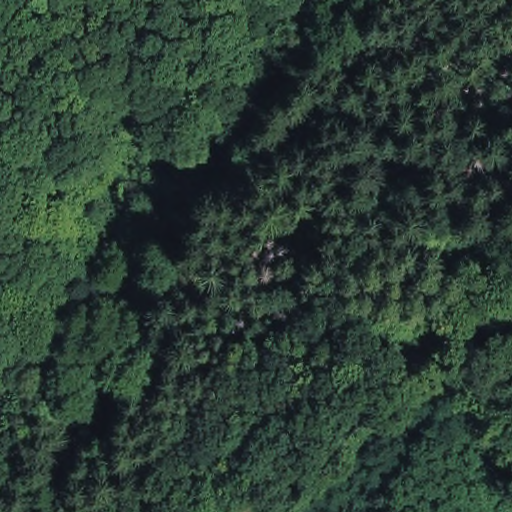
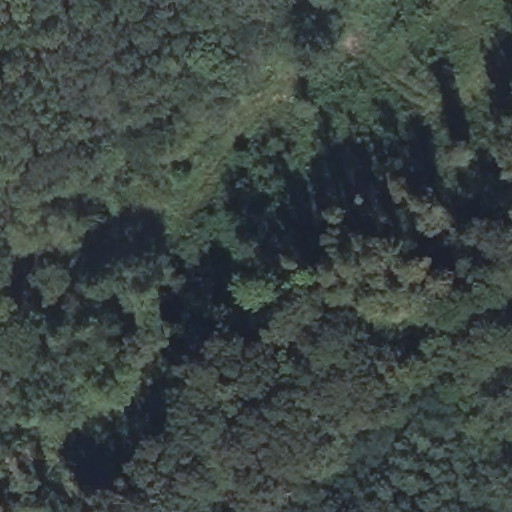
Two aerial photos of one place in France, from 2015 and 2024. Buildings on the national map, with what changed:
[]

